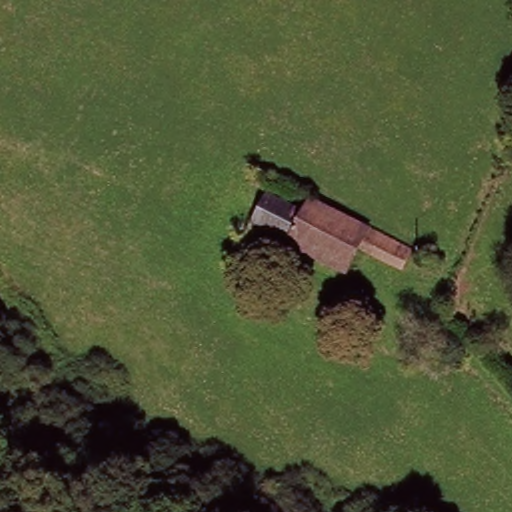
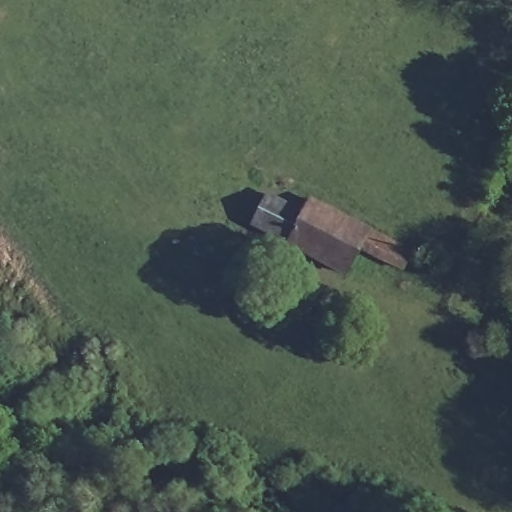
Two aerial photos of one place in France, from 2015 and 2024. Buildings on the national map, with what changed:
unchanged [(399,266),(358,245),(341,272),(247,221),(265,191),(296,209),(306,195),(410,246),(399,266)]

